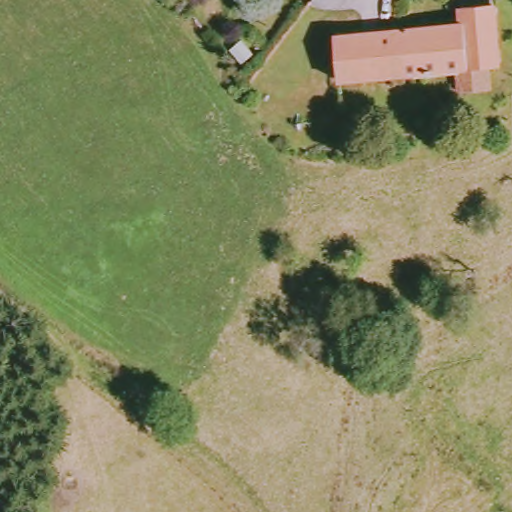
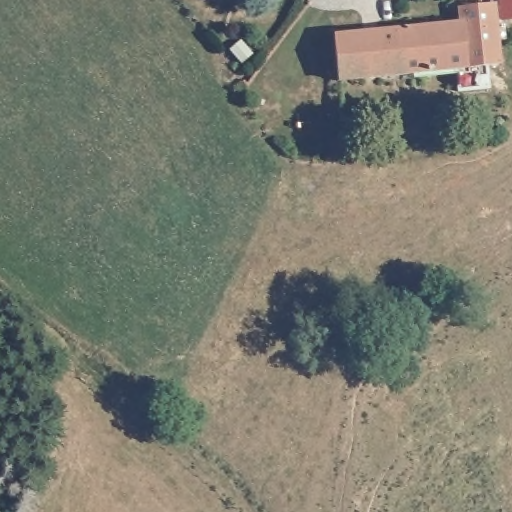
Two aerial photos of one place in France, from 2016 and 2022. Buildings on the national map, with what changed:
unchanged [(340,40),(466,27),(466,12),(499,10),(502,71),(492,74),(494,96),(462,99),(458,76),(341,87),(340,40)]

